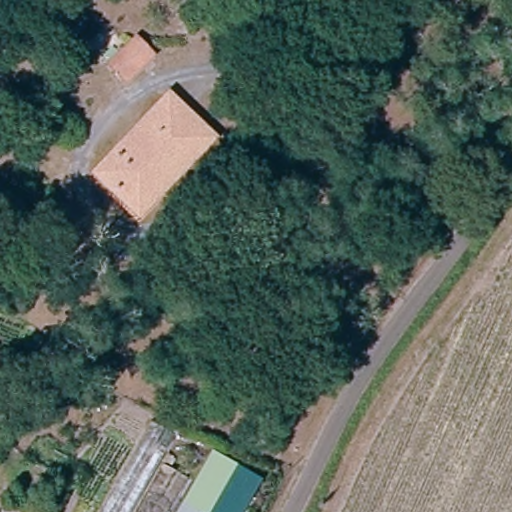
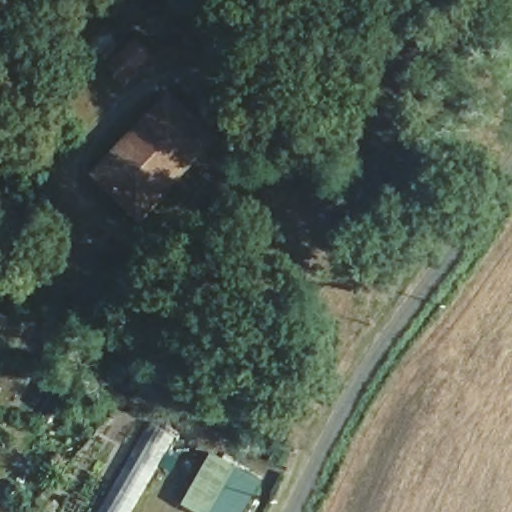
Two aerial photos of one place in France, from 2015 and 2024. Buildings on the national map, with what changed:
unchanged [(136,39),(155,56),(129,87),(110,69),(136,39)]
unchanged [(207,140),(170,179),(159,189),(151,182),(130,204),(125,198),(98,170),(117,149),(111,145),(138,114),(145,119),(164,100),(207,140)]
unchanged [(177,185),(136,226),(116,206),(125,198),(130,204),(151,182),(159,189),(170,179),(177,185)]
unchanged [(156,424),(178,435),(140,512),(110,512),(156,424)]
unchanged [(214,454),(260,480),(242,512),(205,512),(187,501),(214,454)]

